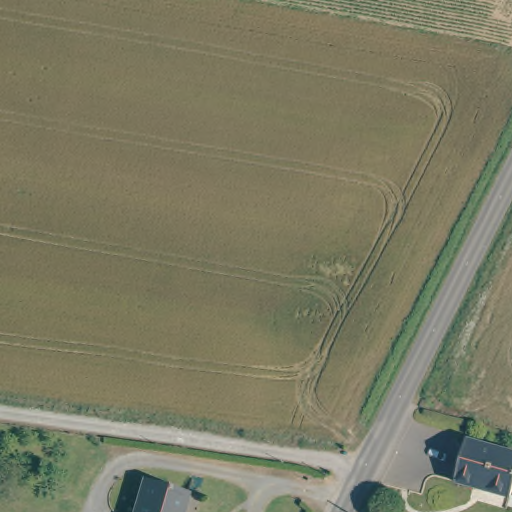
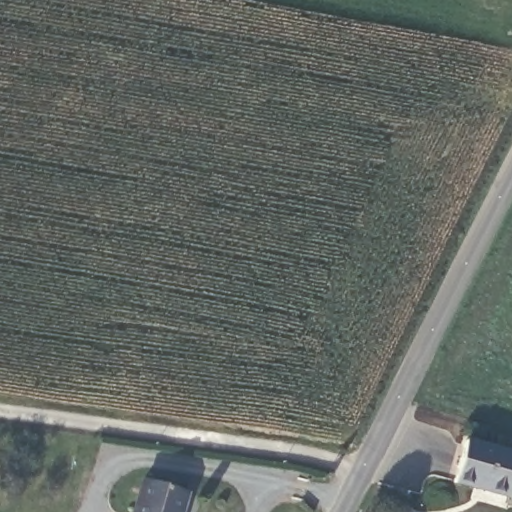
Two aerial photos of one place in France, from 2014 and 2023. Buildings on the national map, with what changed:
unchanged [(512,449),(512,491),(460,478),(468,440),(512,449)]
unchanged [(187,492),(182,512),(136,512),(144,480),(187,492)]

